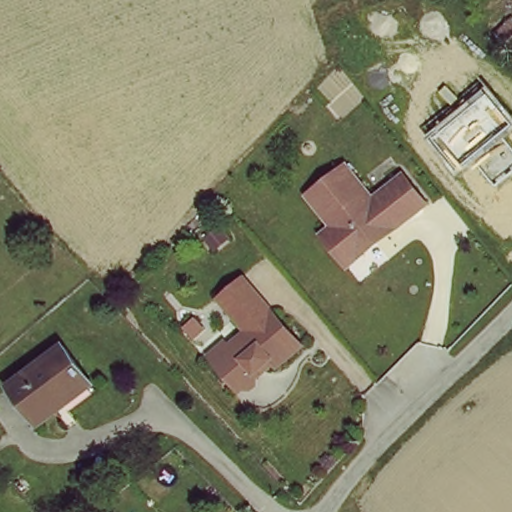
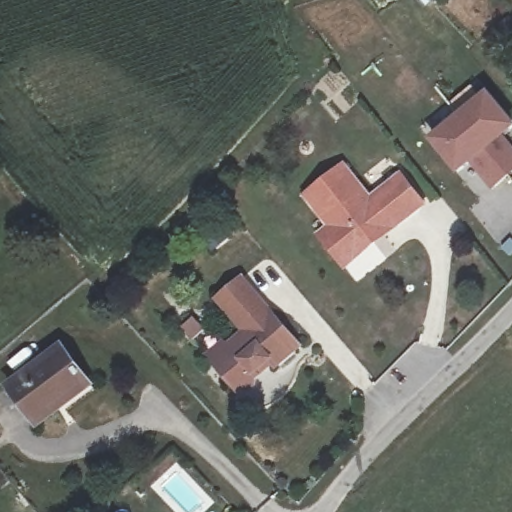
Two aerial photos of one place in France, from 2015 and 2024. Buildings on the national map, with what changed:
new [(512,118),(512,129),(500,139),(512,150),(512,171),(488,190),(464,166),(454,174),(427,137),(489,87),(512,118)]
unchanged [(405,174),(429,202),(379,242),(373,235),(345,257),(325,235),(336,225),(310,194),(348,164),(375,197),(405,174)]
unchanged [(269,304),(300,340),(276,362),(269,355),(254,366),(257,368),(252,380),(248,383),(242,382),(238,383),(222,367),(211,353),(221,345),(245,326),(219,292),(243,272),(269,304)]
unchanged [(95,392),(56,421),(48,417),(32,427),(7,397),(1,388),(56,347),(61,352),(95,392)]

